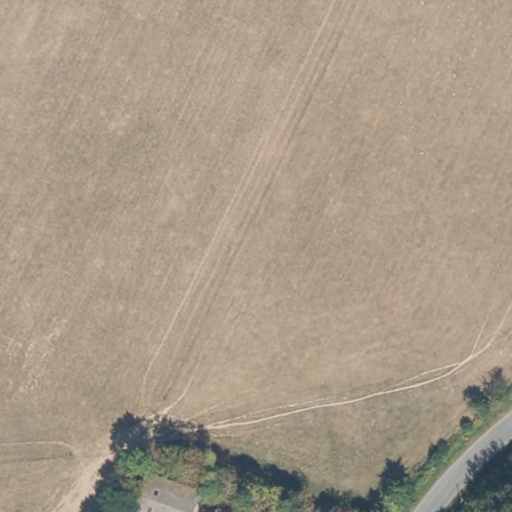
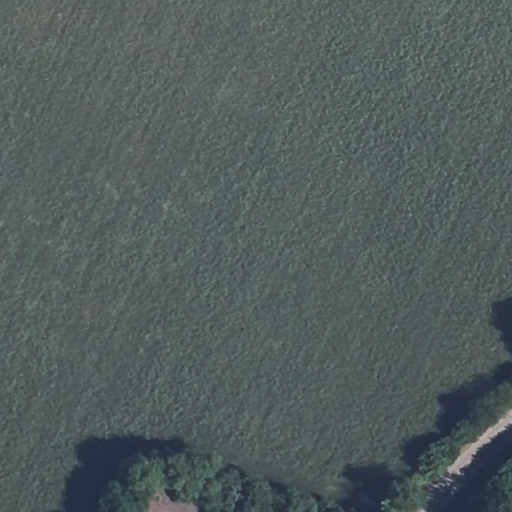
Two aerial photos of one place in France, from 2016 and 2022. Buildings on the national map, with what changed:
unchanged [(202,512),(146,512),(148,491),(203,492),(202,512)]

